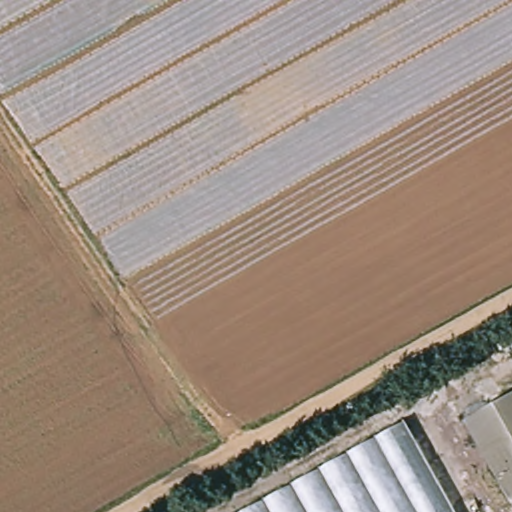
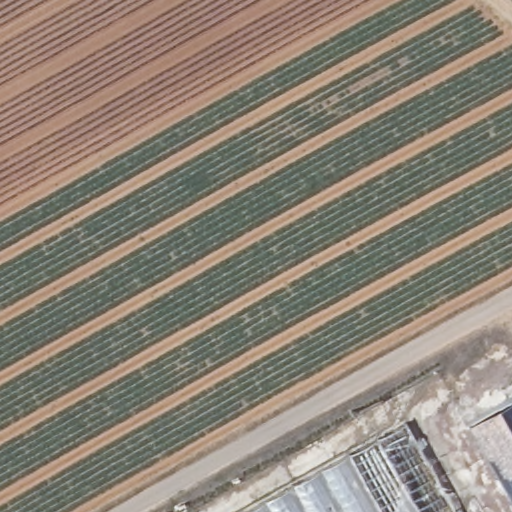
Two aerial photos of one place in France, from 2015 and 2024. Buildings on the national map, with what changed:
unchanged [(512,399),(512,505),(467,424),(512,399)]
unchanged [(453,512),(242,512),(404,423),(453,512)]

